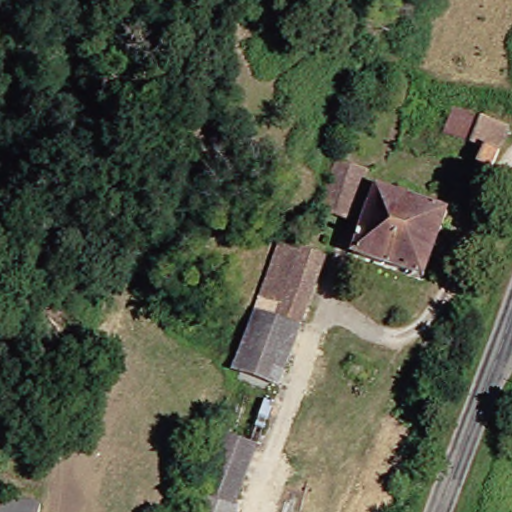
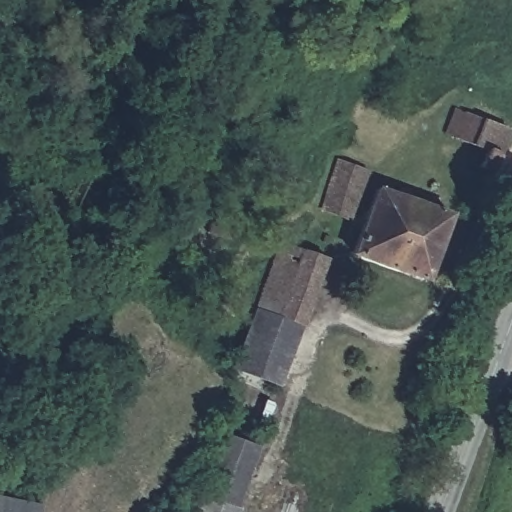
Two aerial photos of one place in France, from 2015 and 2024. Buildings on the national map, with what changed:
unchanged [(490,171),(495,153),(455,133),(465,109),(512,129),(512,142),(500,173),(490,171)]
unchanged [(324,209),(338,174),(345,159),(373,172),(368,187),(355,221),(324,209)]
unchanged [(230,209),(205,199),(210,186),(235,196),(230,209)]
unchanged [(431,279),(359,254),(383,195),(405,202),(408,192),(420,196),(417,207),(452,222),(431,279)]
unchanged [(287,243),(305,251),(280,314),(262,310),(287,243)]
unchanged [(280,314),(305,251),(330,260),(306,324),(280,314)]
unchanged [(245,368),(258,322),(262,310),(280,314),(306,324),(283,381),(245,368)]
unchanged [(230,437),(258,445),(274,402),(283,404),(265,449),(244,512),(203,512),(230,437)]
unchanged [(52,506),(51,512),(0,512),(0,495),(52,506)]

